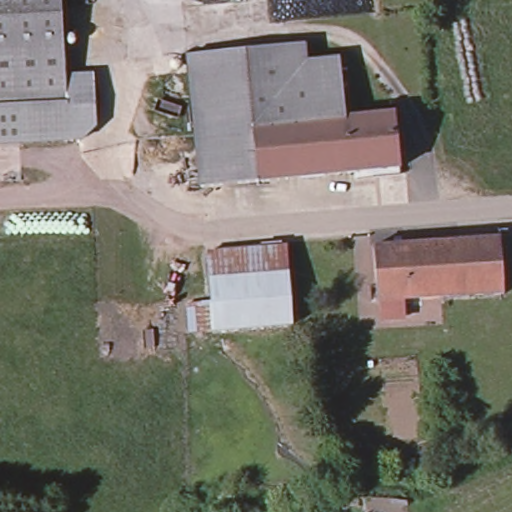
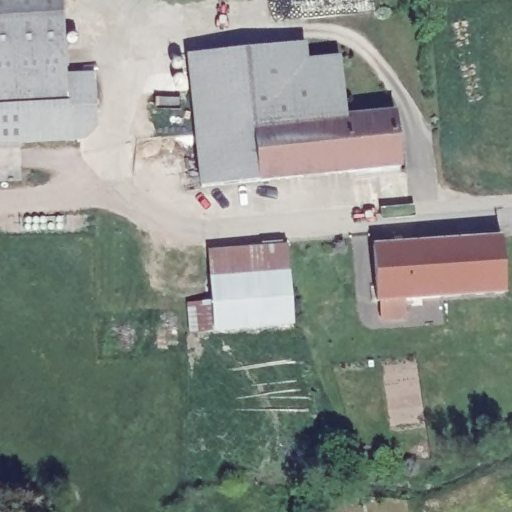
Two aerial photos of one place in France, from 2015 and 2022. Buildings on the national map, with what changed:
unchanged [(61,0),(65,77),(68,103),(0,107),(0,0),(61,0)]
unchanged [(301,42),(302,62),(337,58),(342,117),(341,118),(251,127),(243,49),(301,42)]
unchanged [(198,188),(186,55),(243,49),(251,127),(256,182),(198,188)]
unchanged [(68,103),(65,77),(94,75),(98,126),(85,139),(0,143),(0,107),(68,103)]
unchanged [(342,117),(392,112),(398,167),(346,172),(341,118),(342,117)]
unchanged [(341,118),(346,172),(256,182),(251,127),(341,118)]
unchanged [(503,237),(507,293),(443,297),(438,241),(503,237)]
unchanged [(384,318),(382,301),(380,301),(377,246),(438,241),(443,297),(408,300),(409,317),(384,318)]
unchanged [(208,252),(288,244),(296,324),(216,332),(193,335),(189,307),(214,304),(208,252)]

